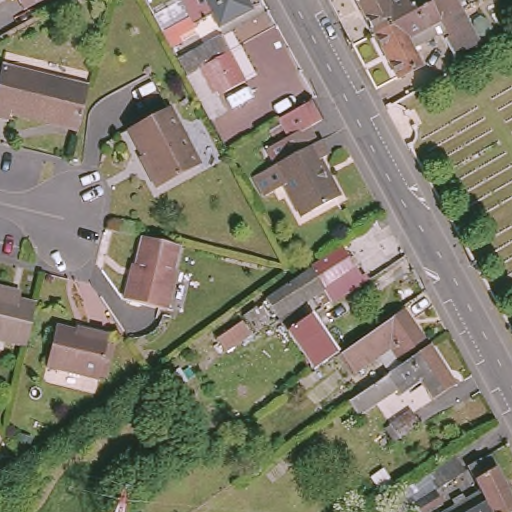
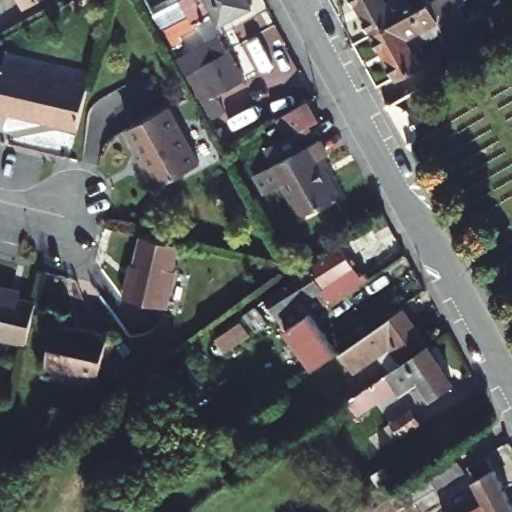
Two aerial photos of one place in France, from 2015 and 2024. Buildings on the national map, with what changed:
unchanged [(197,25),(168,41),(154,15),(182,0),(247,0),(251,8),(218,26),(212,13),(202,18),(195,22),(197,25)]
unchanged [(351,0),(427,0),(368,33),(351,0)]
unchanged [(474,42),(448,57),(435,33),(405,48),(415,66),(392,78),(368,33),(427,0),(459,0),(453,3),(474,42)]
unchanged [(205,119),(197,103),(173,60),(215,37),(239,81),(212,96),(220,113),(205,119)]
unchanged [(80,126),(10,110),(8,116),(0,115),(0,80),(3,64),(89,84),(80,126)]
unchanged [(282,159),(274,142),(295,131),(292,124),(280,130),(275,119),(285,113),(315,97),(319,95),(330,114),(315,121),(323,136),(327,134),(335,149),(326,153),(346,190),(310,210),(293,178),(272,188),(262,169),(282,159)]
unchanged [(129,123),(166,102),(180,126),(142,147),(129,123)]
unchanged [(158,182),(147,161),(149,159),(142,147),(180,126),(198,160),(158,182)]
unchanged [(180,267),(171,304),(127,294),(133,269),(137,270),(145,232),(182,241),(177,266),(180,267)]
unchanged [(297,270),(308,264),(338,243),(350,262),(361,279),(332,298),(323,284),(300,300),(307,311),(312,309),(338,346),(340,347),(315,364),(265,292),(297,270)]
unchanged [(28,341),(0,335),(0,285),(12,287),(11,295),(37,300),(28,341)]
unchanged [(256,329),(243,311),(255,303),(268,322),(256,329)]
unchanged [(404,304),(425,337),(400,353),(392,340),(354,366),(340,347),(404,304)]
unchanged [(47,361),(55,323),(87,329),(87,326),(109,331),(100,374),(47,361)]
unchanged [(362,416),(358,410),(348,396),(427,342),(452,380),(432,392),(420,376),(402,389),(398,384),(369,403),(373,410),(362,416)]
unchanged [(420,423),(400,436),(392,423),(411,411),(420,423)]
unchanged [(454,455),(465,472),(437,492),(443,504),(432,512),(419,512),(415,506),(408,512),(400,512),(392,499),(410,486),(454,455)]
unchanged [(480,492),(468,466),(480,461),(487,475),(497,470),(512,500),(512,512),(446,512),(480,492)]

